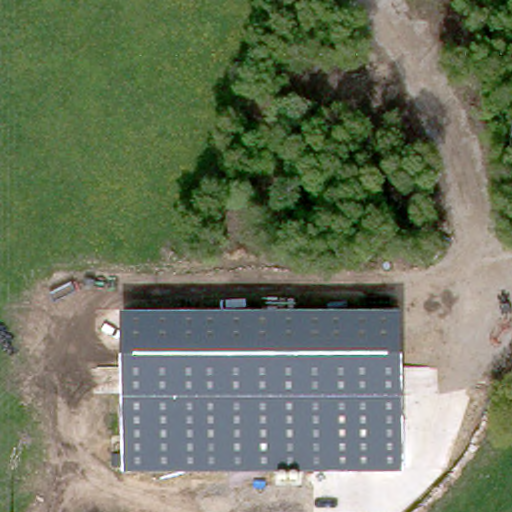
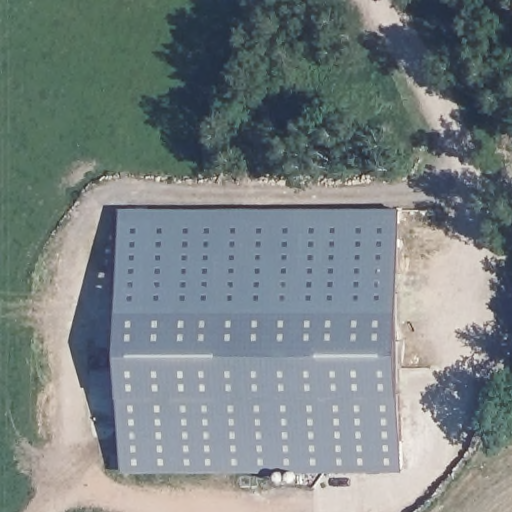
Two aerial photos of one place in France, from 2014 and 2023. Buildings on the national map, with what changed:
new [(402,206),(404,311),(123,311),(122,207),(402,206)]
unchanged [(404,311),(402,472),(125,470),(123,311),(404,311)]

